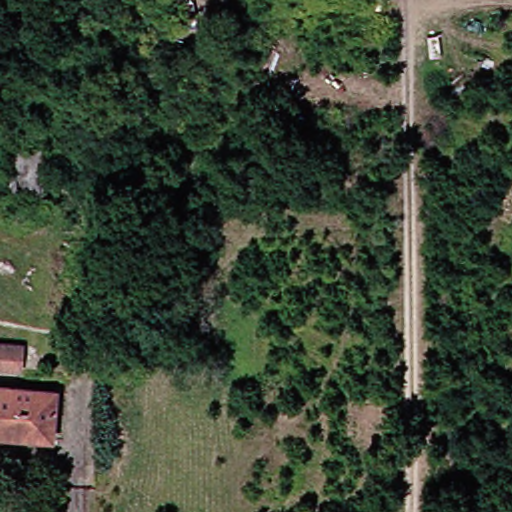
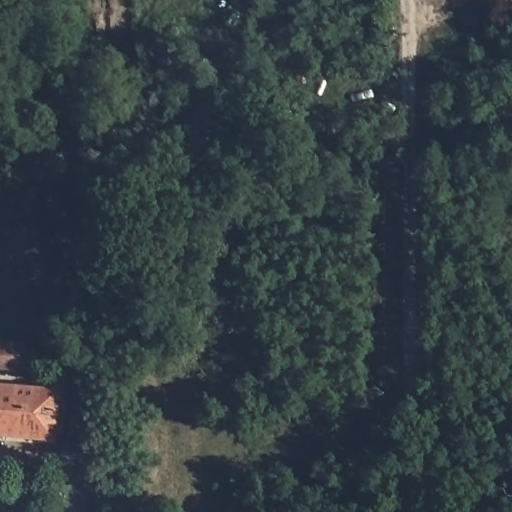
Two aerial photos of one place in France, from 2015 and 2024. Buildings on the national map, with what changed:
unchanged [(21,146),(52,147),(52,190),(22,190),(21,146)]
unchanged [(0,363),(0,337),(28,339),(26,365),(0,363)]
unchanged [(0,433),(0,385),(65,391),(62,438),(0,433)]

